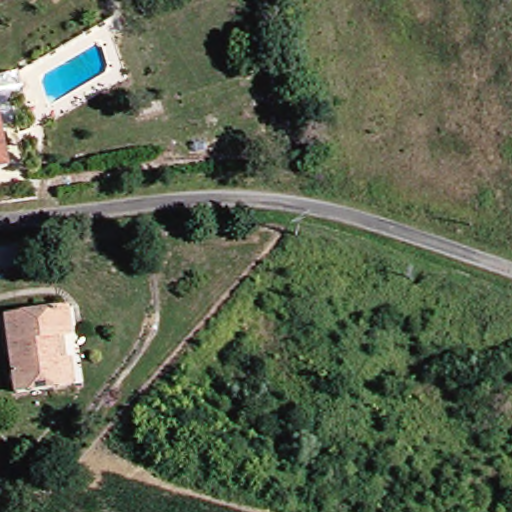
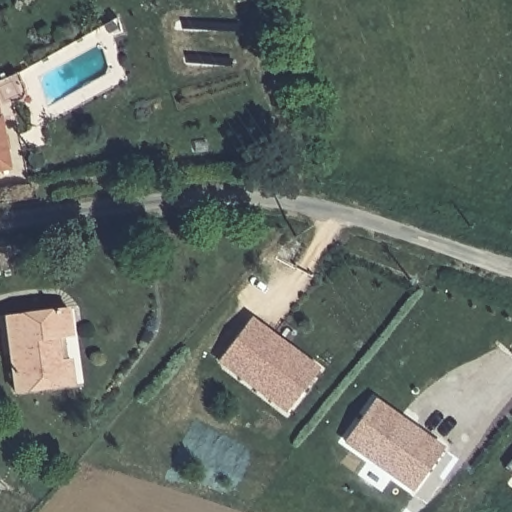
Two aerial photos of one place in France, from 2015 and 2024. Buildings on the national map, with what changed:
unchanged [(0,169),(0,150),(4,168),(0,169)]
unchanged [(63,384),(11,391),(6,352),(1,352),(0,349),(0,317),(1,317),(63,309),(67,334),(52,336),(55,360),(60,360),(66,359),(69,383),(63,384)]
new [(287,411),(219,360),(250,318),(266,330),(272,334),(318,370),(287,411)]
new [(415,490),(345,441),(374,399),(403,420),(408,424),(443,449),(415,490)]
new [(507,468),(512,461),(512,472),(507,468)]

